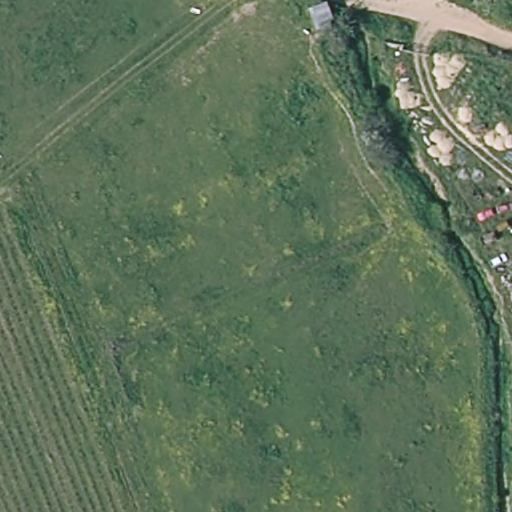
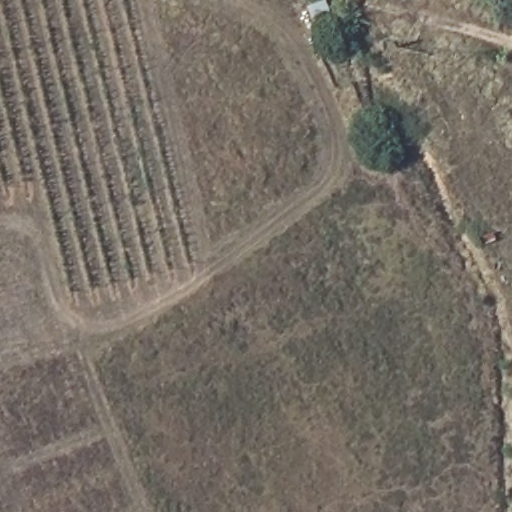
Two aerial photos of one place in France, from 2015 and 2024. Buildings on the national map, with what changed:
unchanged [(331,20),(319,24),(312,4),(324,0),(326,0),(331,20)]

